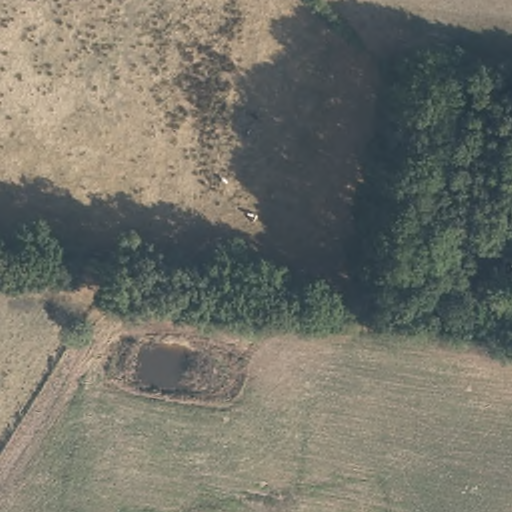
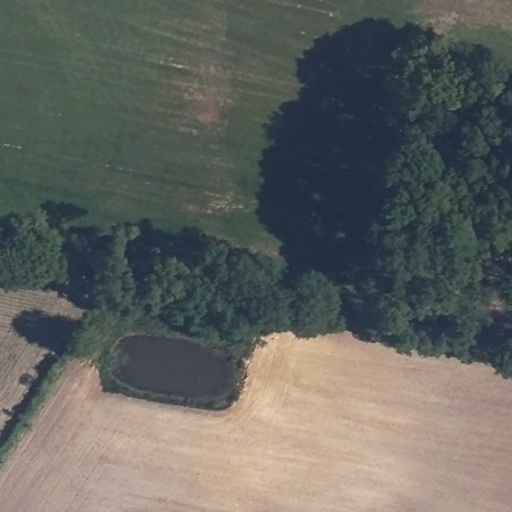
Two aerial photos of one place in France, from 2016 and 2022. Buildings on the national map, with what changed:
[]

